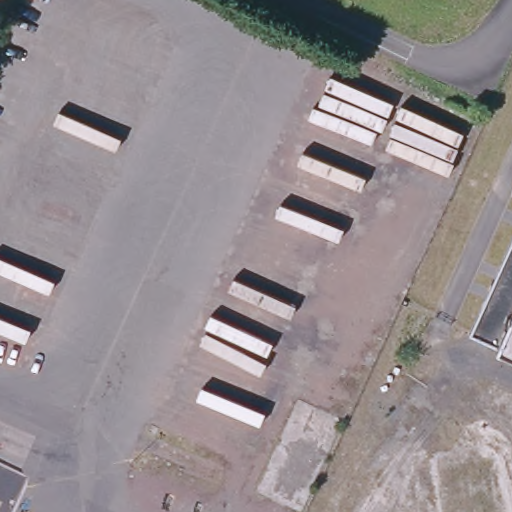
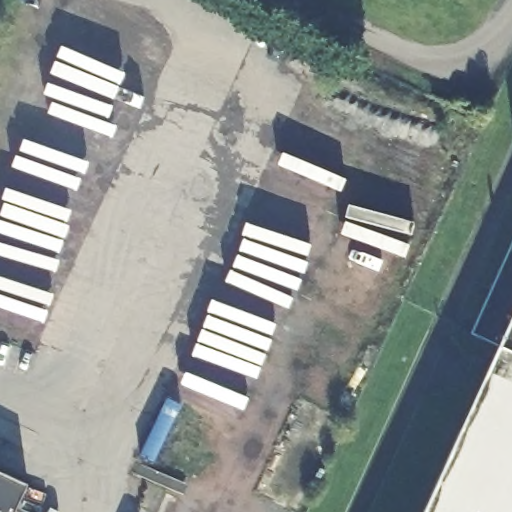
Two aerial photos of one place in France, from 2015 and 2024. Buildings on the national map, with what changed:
unchanged [(512,369),(469,349),(512,255),(512,369)]
new [(512,512),(401,512),(469,349),(512,369),(512,512)]
unchanged [(14,512),(0,512),(0,473),(26,486),(14,512)]

